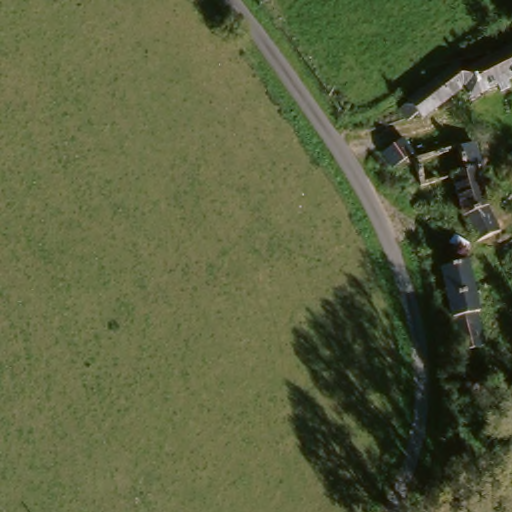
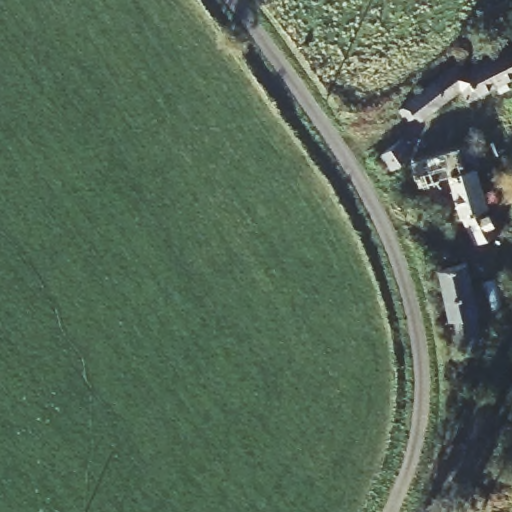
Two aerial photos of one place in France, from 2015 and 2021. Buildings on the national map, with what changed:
unchanged [(416,106),(406,111),(404,106),(398,94),(423,82),(421,80),(453,65),(459,74),(512,48),(512,77),(469,97),(463,92),(420,115),(416,106)]
unchanged [(502,236),(482,242),(460,170),(431,178),(424,156),(466,143),(482,138),(488,156),(486,156),(481,158),(494,205),(502,236)]
unchanged [(409,141),(414,146),(421,155),(404,168),(393,155),(409,141)]
unchanged [(481,287),(486,303),(479,304),(482,318),(489,317),(494,342),(473,347),(462,310),(449,258),(471,255),(481,287)]

